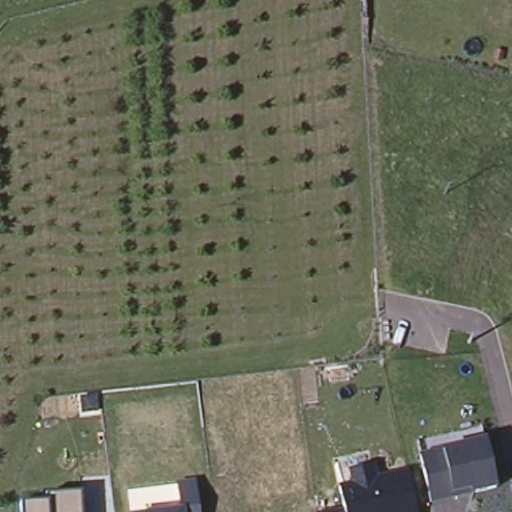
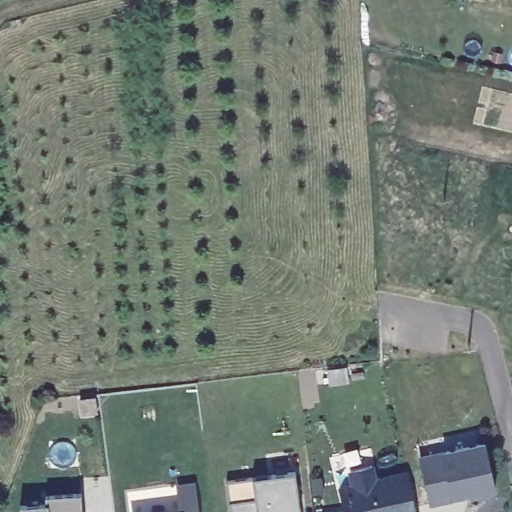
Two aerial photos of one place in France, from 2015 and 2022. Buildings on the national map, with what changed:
unchanged [(498,490),(473,496),(472,492),(451,495),(432,502),(422,460),(443,451),(486,443),(498,490)]
unchanged [(318,512),(343,505),(336,484),(350,480),(347,470),(377,461),(380,478),(407,472),(417,512),(318,512)]
new [(301,512),(231,512),(228,481),(295,472),(301,510),(301,512)]
unchanged [(196,482),(200,512),(179,512),(176,484),(196,482)]
unchanged [(23,512),(23,507),(48,507),(48,496),(82,497),(83,512),(23,512)]

